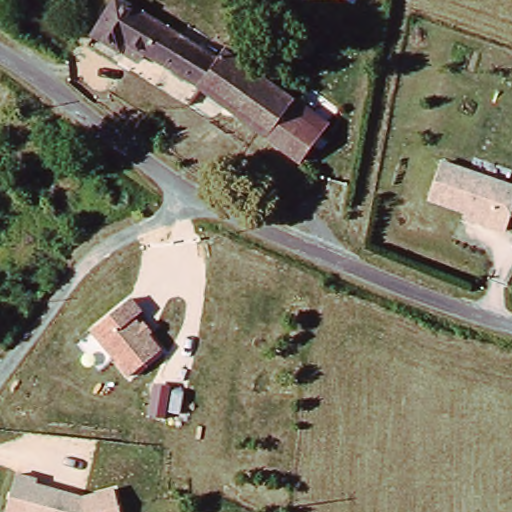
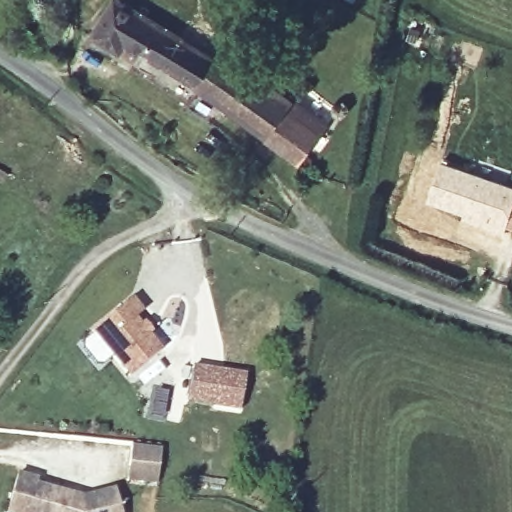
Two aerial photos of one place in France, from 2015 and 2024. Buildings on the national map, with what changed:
unchanged [(134,57),(118,47),(95,32),(114,0),(129,0),(215,52),(220,44),(293,92),(287,102),(319,124),(299,152),(143,46),(134,57)]
unchanged [(490,219),(428,201),(439,164),(512,184),(512,204),(505,230),(489,225),(490,219)]
unchanged [(134,297),(145,313),(136,320),(141,325),(145,322),(154,333),(150,337),(162,351),(127,376),(91,330),(134,297)]
new [(192,366),(247,372),(240,412),(186,402),(192,366)]
new [(147,416),(153,383),(172,387),(166,402),(182,403),(179,418),(170,417),(166,419),(147,416)]
new [(131,442),(162,447),(156,487),(124,483),(131,442)]
unchanged [(37,486),(86,498),(116,488),(122,512),(6,512),(16,473),(39,478),(37,486)]

